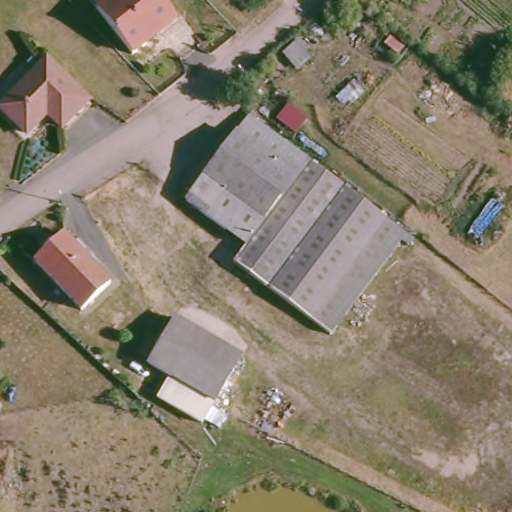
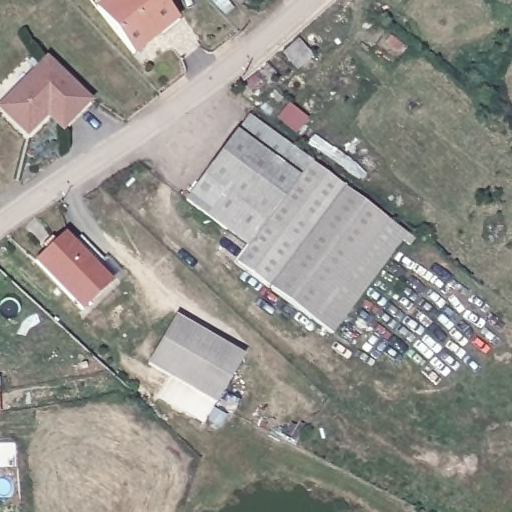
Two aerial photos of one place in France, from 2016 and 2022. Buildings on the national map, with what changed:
unchanged [(130,59),(93,14),(110,0),(161,0),(177,21),(130,59)]
unchanged [(85,101),(58,126),(46,114),(24,132),(0,107),(0,99),(44,59),(85,101)]
unchanged [(271,244),(196,184),(251,116),(325,176),(271,244)]
unchanged [(307,326),(230,264),(243,247),(184,200),(196,184),(271,244),(325,176),(403,238),(360,291),(321,337),(307,326)]
unchanged [(106,284),(77,311),(31,262),(61,235),(106,284)]
unchanged [(206,402),(145,362),(174,320),(238,362),(213,397),(206,402)]

